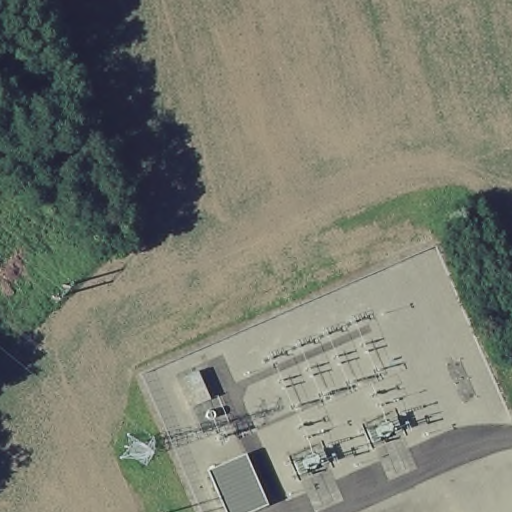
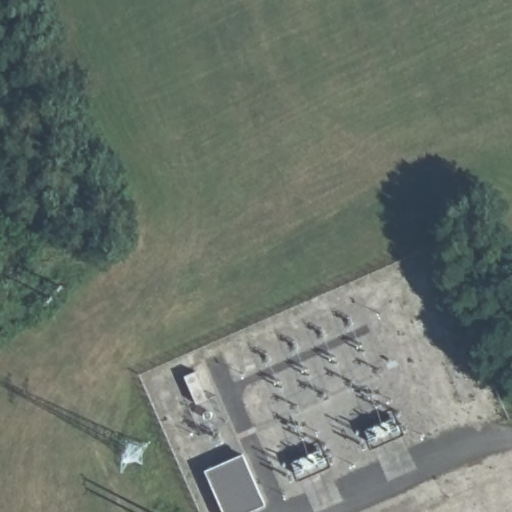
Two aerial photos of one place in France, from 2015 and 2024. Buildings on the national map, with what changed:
unchanged [(248,512),(229,512),(210,469),(250,452),(270,501),(248,512)]

